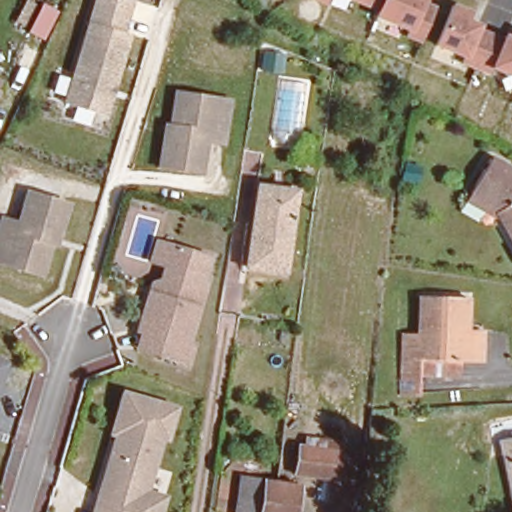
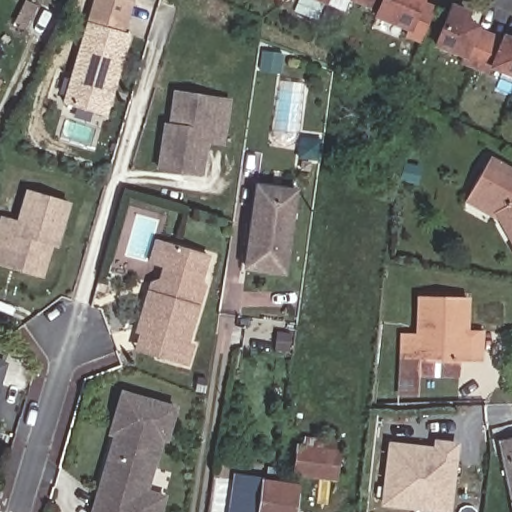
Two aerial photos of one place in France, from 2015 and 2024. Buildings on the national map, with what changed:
unchanged [(21,29),(10,23),(20,0),(21,0),(32,5),(21,29)]
unchanged [(110,86),(109,93),(110,98),(106,114),(65,101),(95,0),(131,0),(122,30),(130,32),(115,84),(110,86)]
unchanged [(318,0),(333,0),(330,4),(318,0)]
unchanged [(405,31),(372,19),(375,8),(351,0),(430,0),(440,5),(423,44),(403,36),(405,31)]
unchanged [(491,74),(458,63),(461,56),(433,47),(450,3),(474,10),(470,21),(512,37),(512,80),(491,74)]
unchanged [(206,144),(202,177),(159,171),(164,134),(169,135),(174,95),(197,98),(229,102),(226,116),(222,146),(206,144)]
unchanged [(500,224),(465,204),(470,196),(490,163),(512,175),(512,243),(500,224)]
unchanged [(295,191),(285,272),(246,266),(257,186),(295,191)]
unchanged [(0,244),(0,223),(3,213),(19,218),(29,187),(70,199),(59,235),(54,234),(42,272),(20,265),(0,259),(0,244)]
unchanged [(141,335),(152,295),(155,287),(164,283),(167,269),(153,264),(158,244),(173,249),(210,259),(204,283),(207,288),(190,348),(196,349),(191,368),(164,360),(140,354),(145,336),(141,335)]
unchanged [(403,374),(403,369),(403,333),(420,333),(421,296),(466,296),(466,329),(471,329),(483,329),(483,362),(471,361),(420,360),(420,369),(420,374),(403,374)]
unchanged [(0,361),(3,363),(0,373),(0,361)]
unchanged [(161,512),(94,512),(99,497),(110,459),(116,455),(120,445),(115,444),(117,434),(112,433),(125,392),(178,409),(169,440),(164,439),(147,492),(165,497),(161,512)]
new [(437,442),(438,434),(458,437),(450,503),(385,496),(392,437),(437,442)]
unchanged [(290,482),(293,457),(300,458),(301,447),(335,451),(333,463),(330,487),(290,482)]
unchanged [(503,458),(512,456),(512,500),(503,458)]
unchanged [(261,478),(256,512),(236,512),(242,474),(261,478)]
unchanged [(265,486),(276,488),(298,491),(295,512),(261,512),(265,486)]

